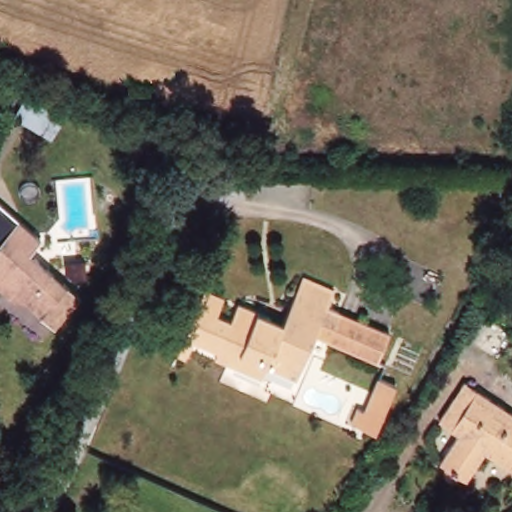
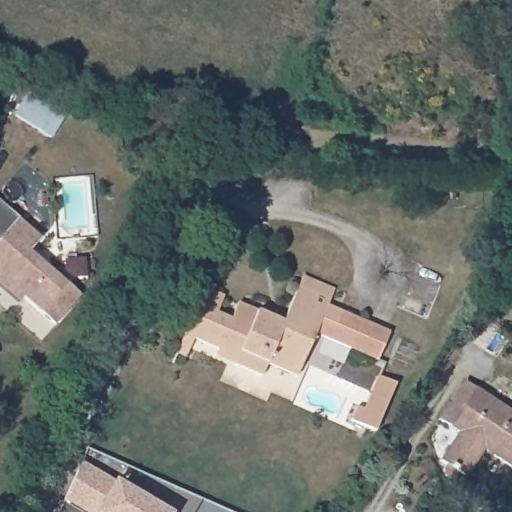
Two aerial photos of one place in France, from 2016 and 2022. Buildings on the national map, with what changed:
unchanged [(28,95),(66,115),(52,137),(15,115),(28,95)]
unchanged [(5,291),(0,286),(0,239),(18,219),(39,238),(27,251),(79,296),(53,325),(22,298),(18,302),(5,291)]
unchanged [(265,363),(260,376),(232,363),(213,356),(216,347),(193,338),(186,356),(177,352),(185,334),(205,288),(223,296),(216,313),(231,320),(239,303),(282,322),(300,282),(303,274),(334,288),(331,296),(327,304),(390,332),(377,360),(315,333),(300,367),(296,377),(265,363)]
unchanged [(400,384),(377,435),(347,422),(354,405),(363,408),(376,376),(400,384)]
unchanged [(512,415),(512,470),(483,450),(465,477),(458,472),(453,477),(449,476),(445,474),(444,469),(445,462),(439,458),(456,431),(439,419),(464,382),(512,415)]
new [(82,461),(114,480),(170,512),(84,512),(63,500),(82,461)]

